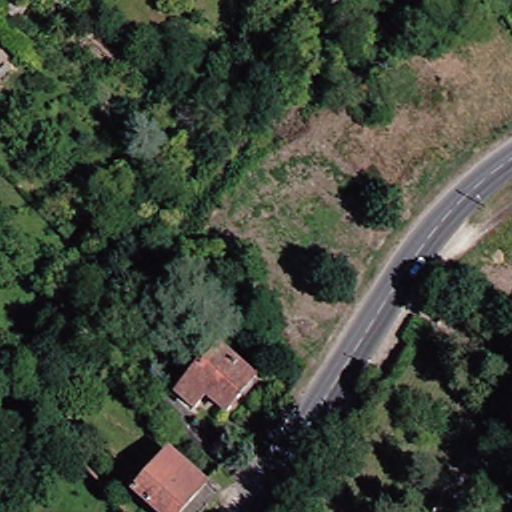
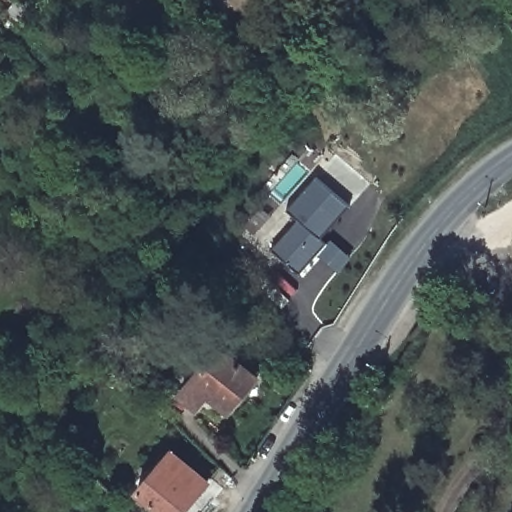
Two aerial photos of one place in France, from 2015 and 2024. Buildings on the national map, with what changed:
unchanged [(206,92),(217,101),(204,116),(193,107),(206,92)]
new [(298,222),(286,212),(316,179),(348,206),(318,239),(327,245),(298,276),(273,251),(298,222)]
unchanged [(210,393),(198,408),(184,396),(205,372),(208,375),(227,353),(258,379),(231,411),(210,393)]
unchanged [(167,512),(165,512),(131,483),(165,444),(200,474),(204,469),(215,478),(186,512),(173,512),(169,509),(167,512)]

